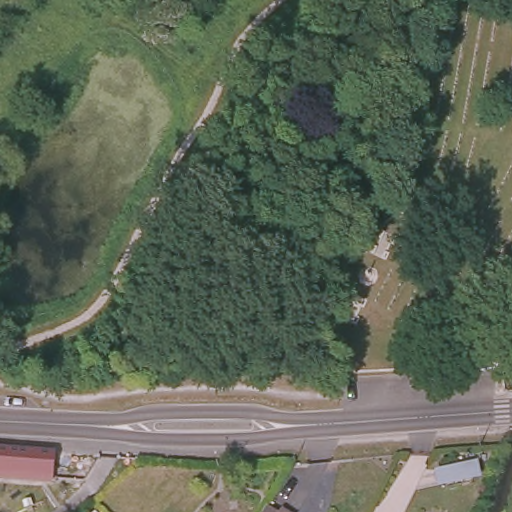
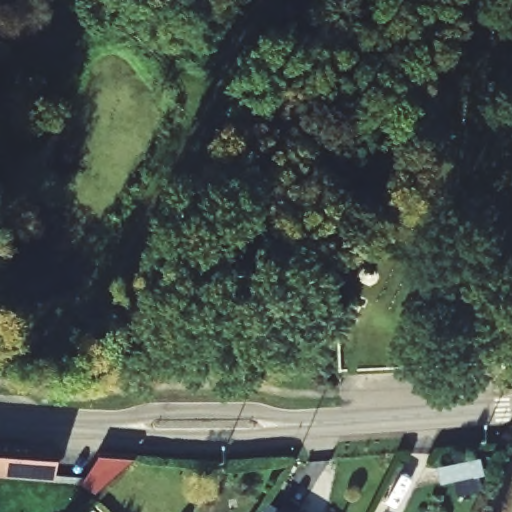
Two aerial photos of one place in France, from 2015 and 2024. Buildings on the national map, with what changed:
unchanged [(53,447),(52,473),(0,470),(0,444),(53,447)]
unchanged [(218,479),(205,478),(206,463),(220,464),(218,479)]
unchanged [(292,509),(291,512),(271,512),(278,500),(292,509)]

